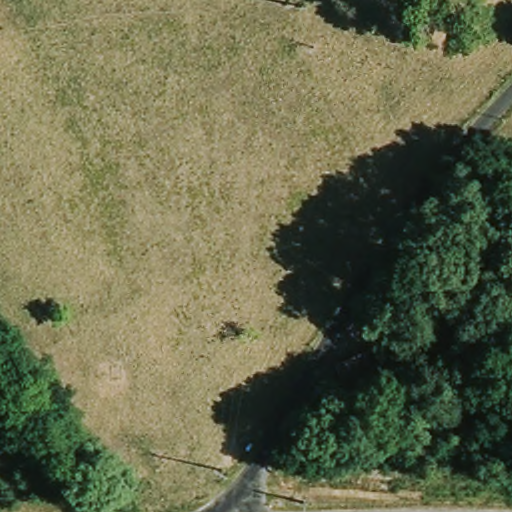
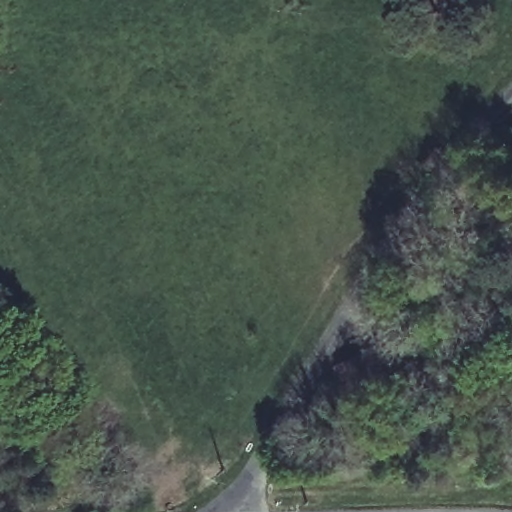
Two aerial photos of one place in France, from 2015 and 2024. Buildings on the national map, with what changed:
unchanged [(385,342),(399,380),(349,400),(335,367),(385,342)]

